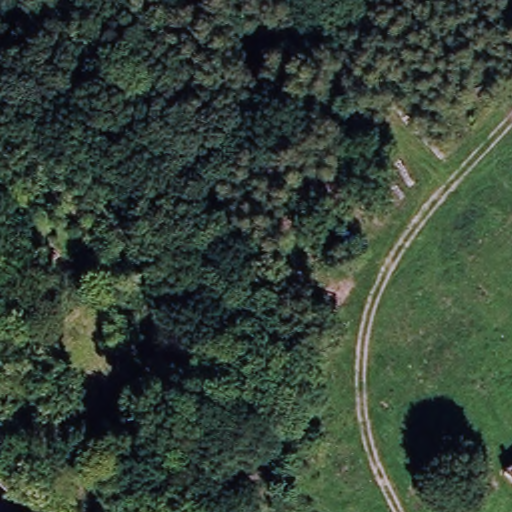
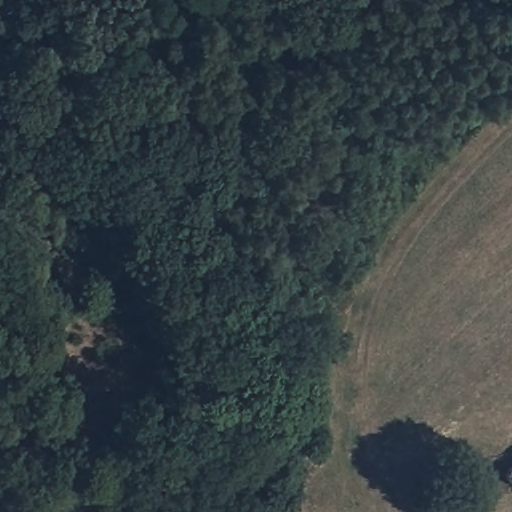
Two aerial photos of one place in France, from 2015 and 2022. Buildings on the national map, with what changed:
unchanged [(8,229),(15,238),(0,252),(0,237),(8,229)]
unchanged [(512,464),(512,481),(503,472),(512,464)]

